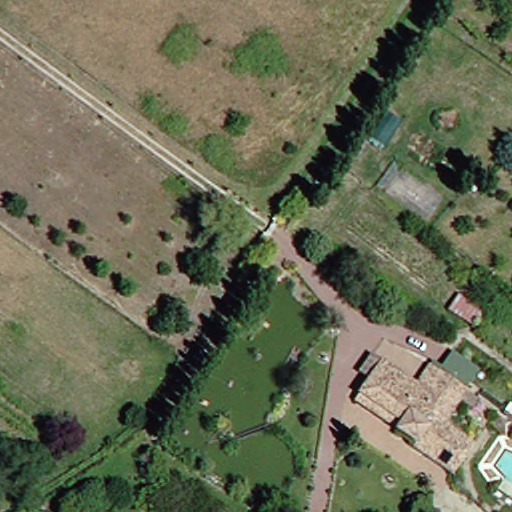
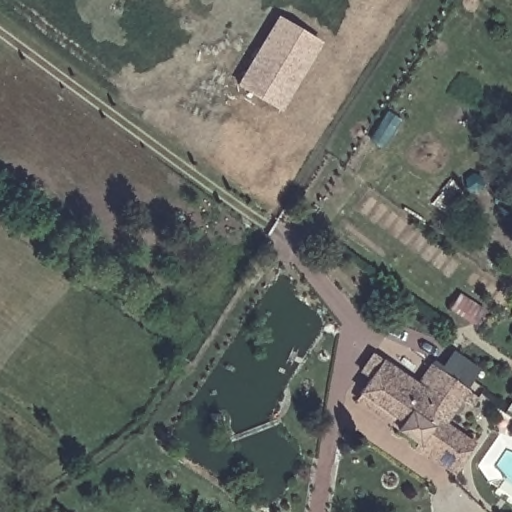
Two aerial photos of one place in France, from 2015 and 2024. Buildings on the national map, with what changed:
new [(266,100),(243,85),(259,59),(264,50),(283,19),(322,42),(291,95),(283,109),(266,100)]
unchanged [(365,370),(373,376),(382,363),(407,381),(417,388),(430,370),(455,387),(434,419),(462,440),(442,468),(406,443),(408,440),(347,397),(365,370)]

